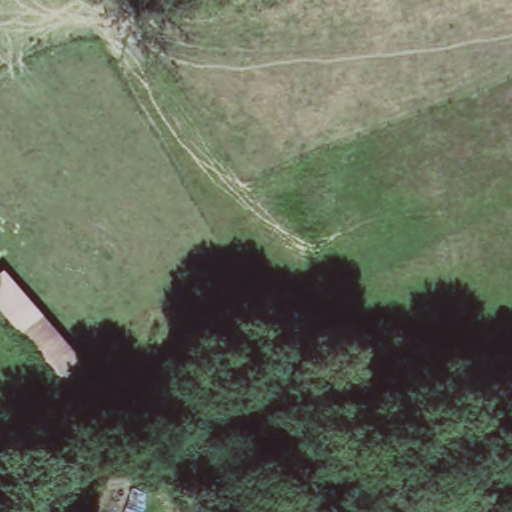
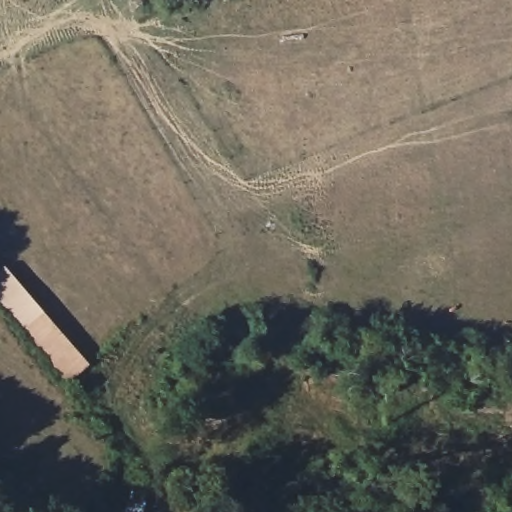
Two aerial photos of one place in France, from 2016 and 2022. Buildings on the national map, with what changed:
unchanged [(90,365),(67,386),(0,311),(0,271),(5,266),(90,365)]

